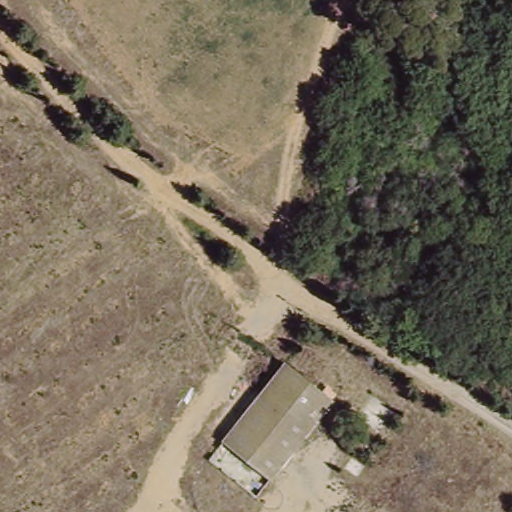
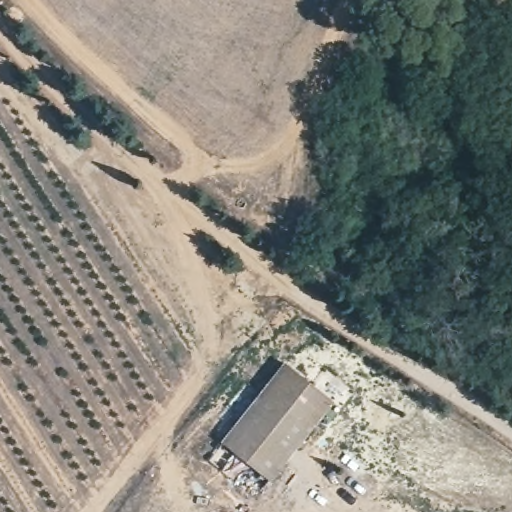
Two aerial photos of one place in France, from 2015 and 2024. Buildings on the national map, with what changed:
unchanged [(341,407),(276,480),(231,439),(295,367),(341,407)]

